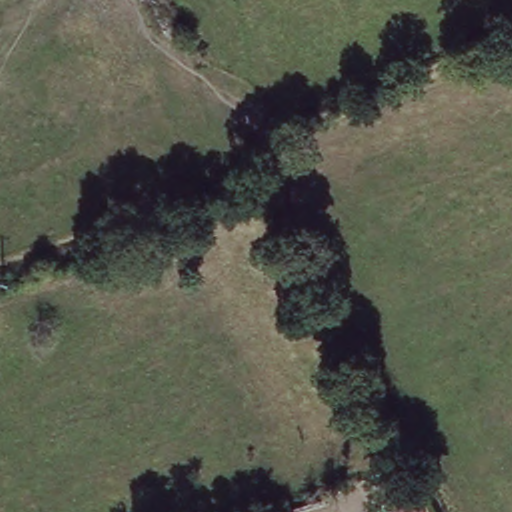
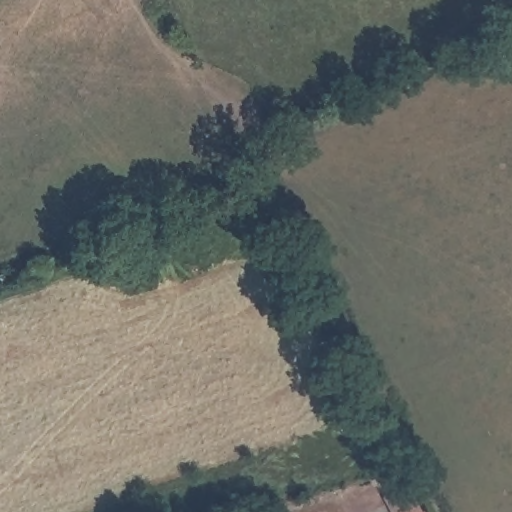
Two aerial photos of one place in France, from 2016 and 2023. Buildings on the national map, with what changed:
unchanged [(380,497),(406,477),(425,512),(388,512),(380,497)]

